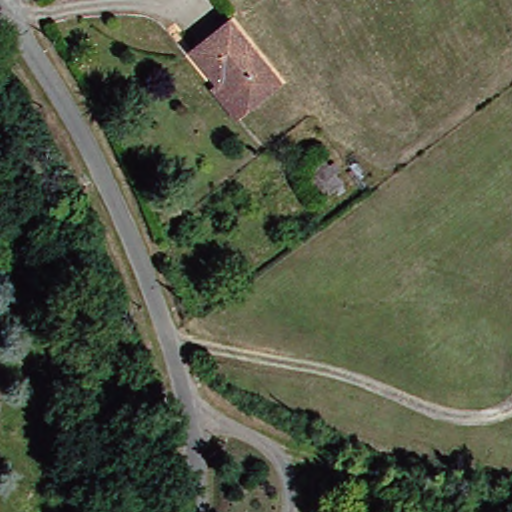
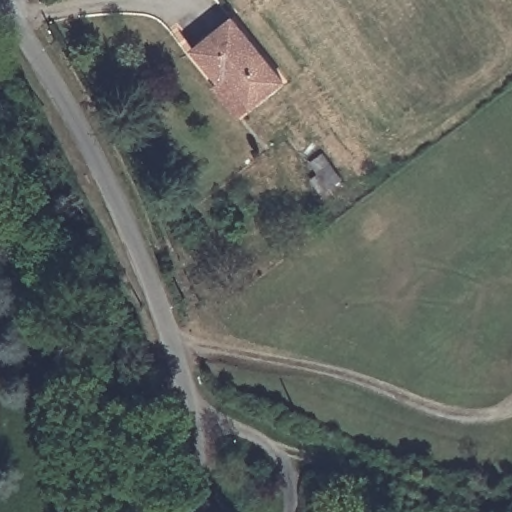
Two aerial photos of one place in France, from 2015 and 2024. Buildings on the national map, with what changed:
unchanged [(283,89),(251,114),(229,86),(220,92),(192,57),(232,25),(283,89)]

